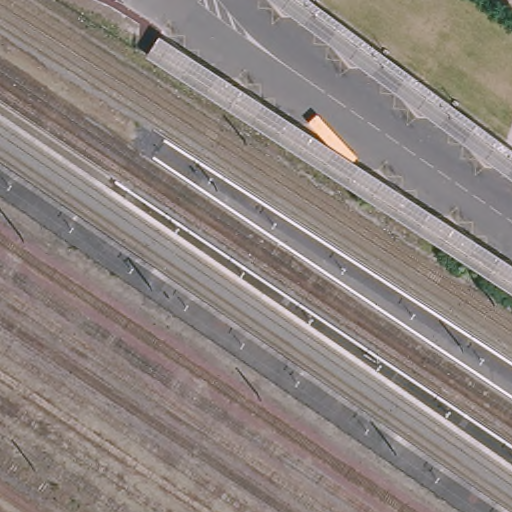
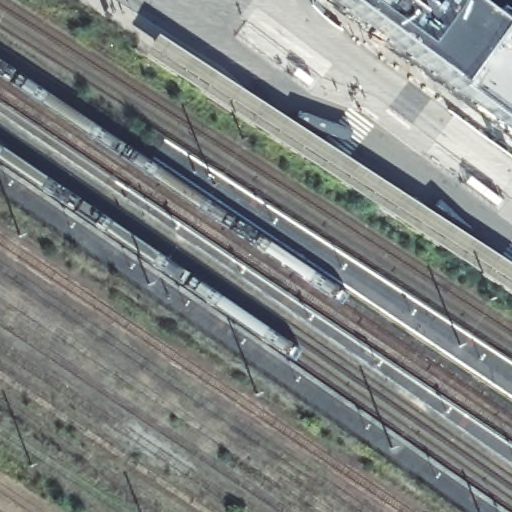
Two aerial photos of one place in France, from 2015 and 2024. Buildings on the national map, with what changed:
new [(496,33),(512,44),(512,130),(457,89),(334,0),(460,0),(499,29),(496,33)]
unchanged [(512,295),(145,56),(158,36),(512,266),(512,295)]

